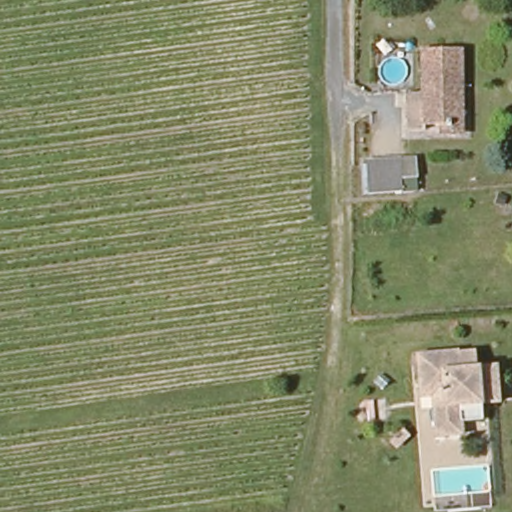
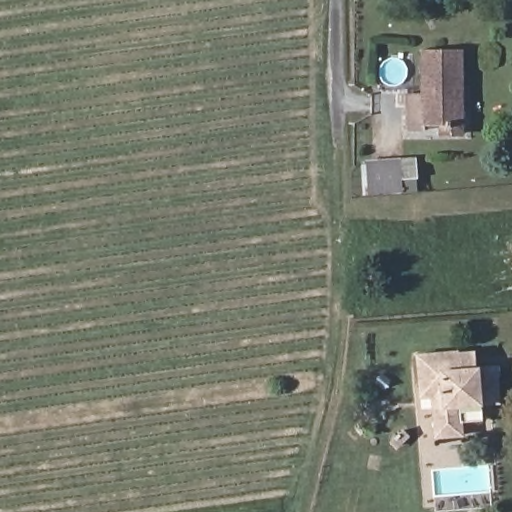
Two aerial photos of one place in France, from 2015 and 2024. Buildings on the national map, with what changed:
unchanged [(440,140),(440,125),(425,125),(426,135),(405,135),(403,95),(420,95),(420,48),(461,48),(462,95),(462,140),(440,140)]
unchanged [(364,199),(362,166),(394,164),(410,163),(411,183),(396,184),(397,197),(364,199)]
unchanged [(460,352),(476,352),(476,369),(498,368),(498,377),(422,385),(421,353),(460,352)]
unchanged [(434,436),(435,426),(434,396),(422,396),(422,385),(498,377),(500,404),(482,405),(482,422),(462,423),(462,427),(462,437),(434,436)]

